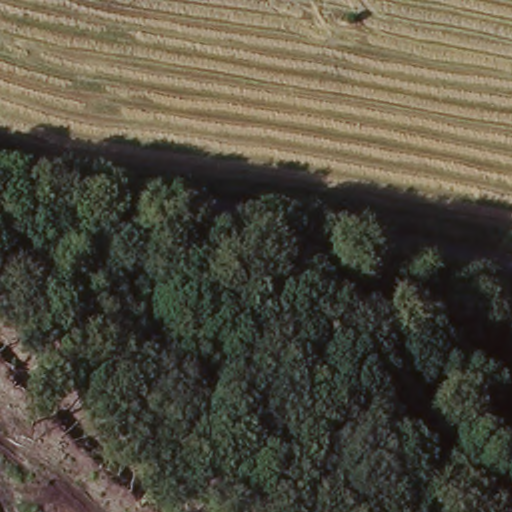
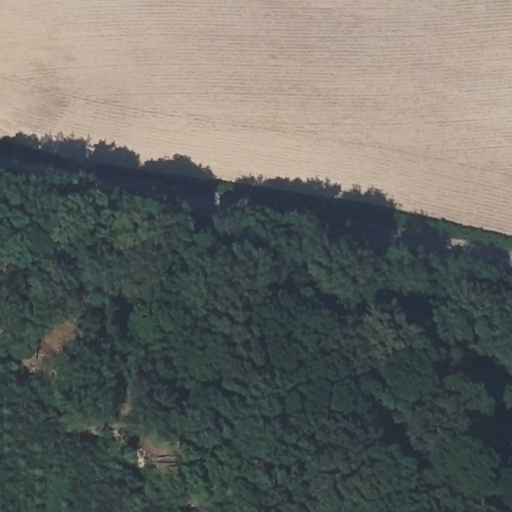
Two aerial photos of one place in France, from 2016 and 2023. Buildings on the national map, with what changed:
unchanged [(153,308),(142,348),(102,343),(108,303),(153,308)]
unchanged [(154,366),(145,385),(126,376),(134,357),(154,366)]
unchanged [(224,411),(221,426),(205,421),(209,408),(224,411)]

